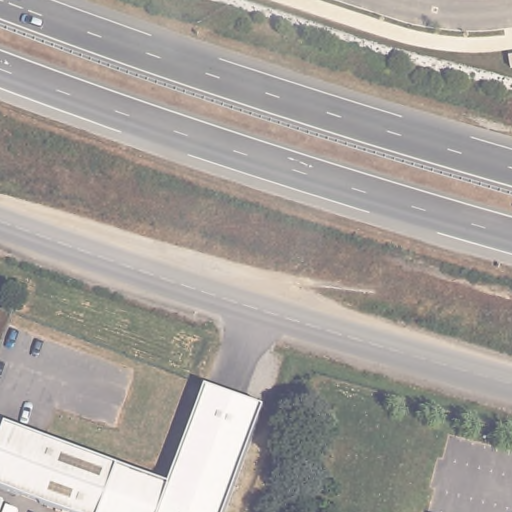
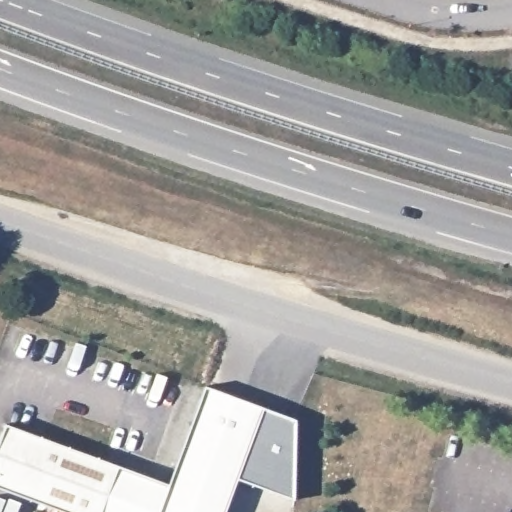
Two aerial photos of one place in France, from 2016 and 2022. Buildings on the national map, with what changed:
new [(512,57),(512,68),(512,69),(510,57),(512,57)]
unchanged [(120,466),(169,484),(204,385),(264,407),(225,512),(103,512),(120,466)]
new [(264,407),(296,419),(295,501),(238,479),(264,407)]
unchanged [(103,512),(64,512),(0,488),(0,439),(6,424),(120,466),(103,512)]

